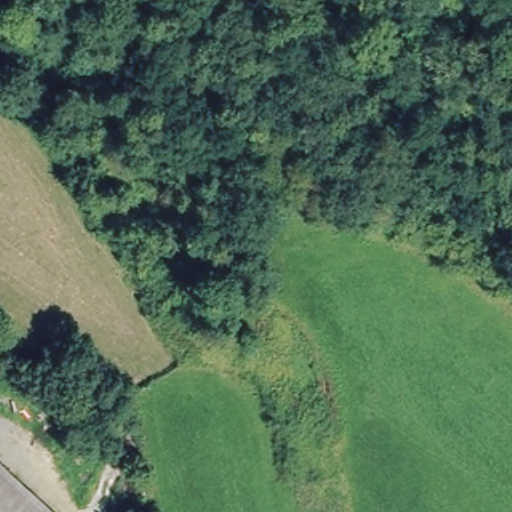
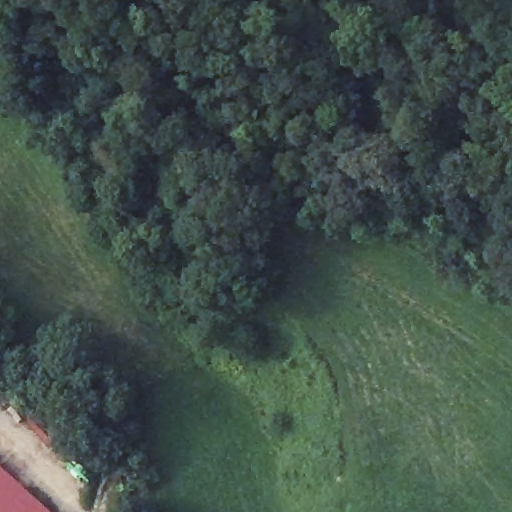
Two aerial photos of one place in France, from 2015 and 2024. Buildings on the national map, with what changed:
unchanged [(0,464),(51,512),(0,512),(0,464)]

